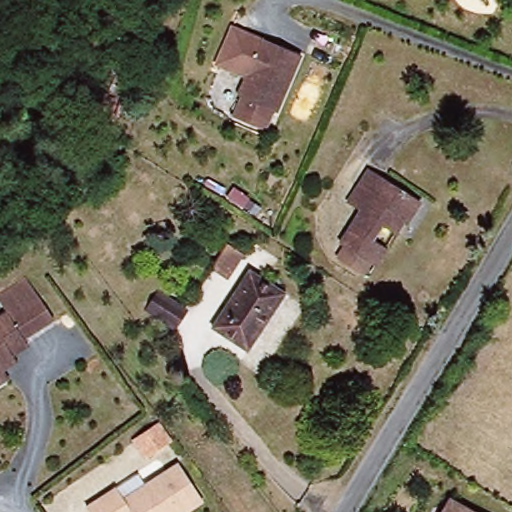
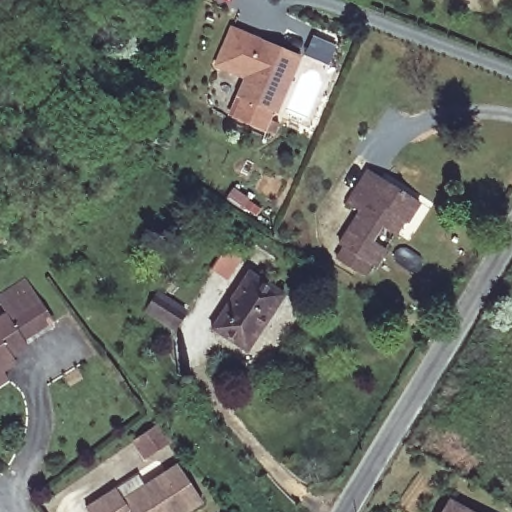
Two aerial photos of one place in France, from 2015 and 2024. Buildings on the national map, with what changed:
unchanged [(224,62),(240,23),(270,37),(253,75),(224,62)]
unchanged [(306,52),(282,109),(279,108),(271,127),(240,113),(247,94),(245,93),(253,75),(270,37),(306,52)]
unchanged [(410,219),(402,231),(387,222),(377,237),(392,247),(380,265),(375,262),(370,271),(343,254),(350,244),(345,242),(365,210),(352,202),(362,188),(373,168),(385,176),(422,199),(410,219)]
unchanged [(241,256),(225,280),(212,271),(227,247),(241,256)]
unchanged [(287,291),(251,347),(217,325),(253,269),(287,291)]
unchanged [(20,358),(23,363),(0,379),(0,324),(14,314),(43,294),(57,315),(28,335),(36,346),(20,358)]
unchanged [(159,296),(183,312),(174,327),(149,311),(159,296)]
unchanged [(167,446),(142,464),(130,448),(154,430),(167,446)]
unchanged [(117,512),(93,512),(92,509),(120,489),(127,498),(181,459),(207,496),(183,512),(178,512),(177,511),(176,512),(119,512),(118,511),(117,512)]
unchanged [(468,512),(445,512),(451,502),(468,512)]

